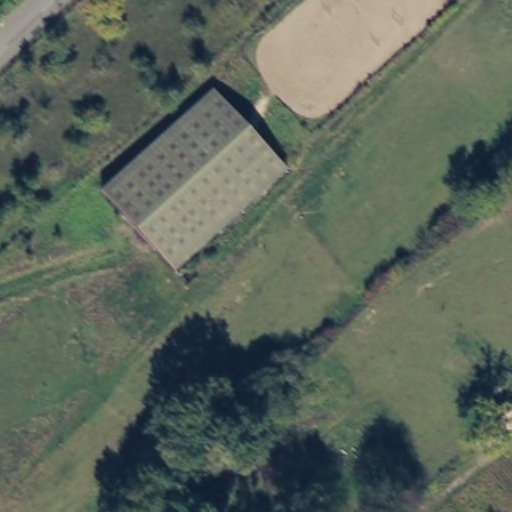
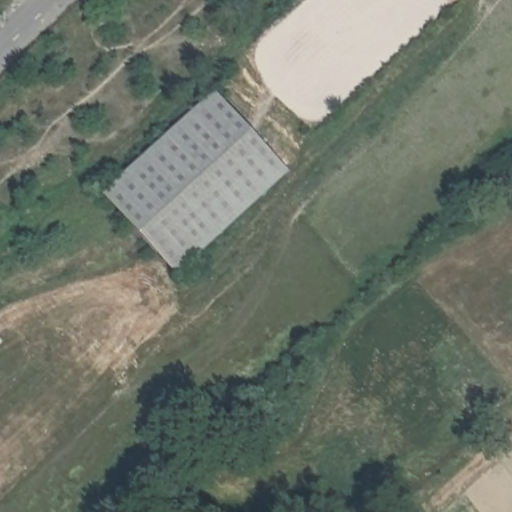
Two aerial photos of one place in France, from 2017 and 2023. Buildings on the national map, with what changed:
unchanged [(289,170),(176,275),(102,189),(215,88),(289,170)]

